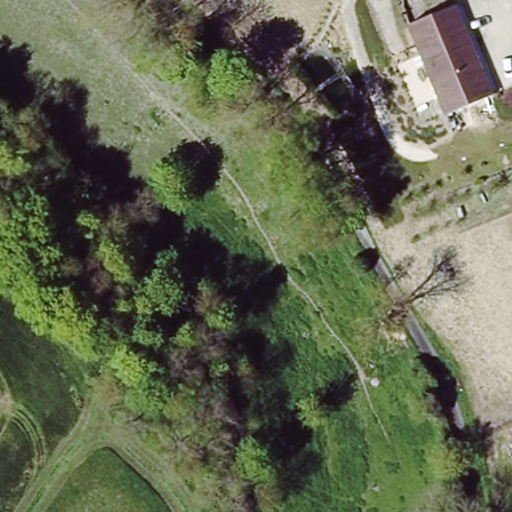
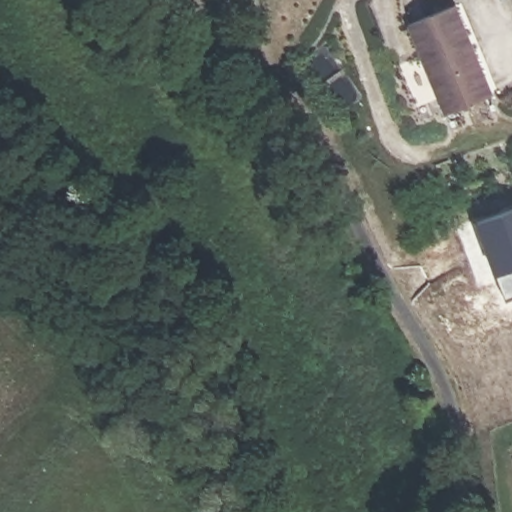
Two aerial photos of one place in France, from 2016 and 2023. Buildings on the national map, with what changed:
unchanged [(407,26),(456,2),(492,95),(445,115),(407,26)]
new [(512,299),(505,302),(476,222),(512,209),(512,299)]

